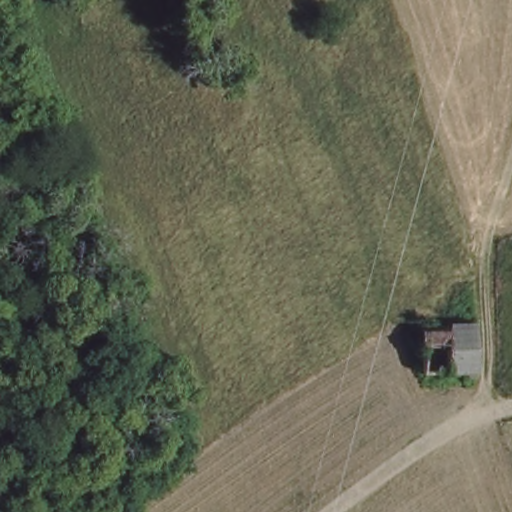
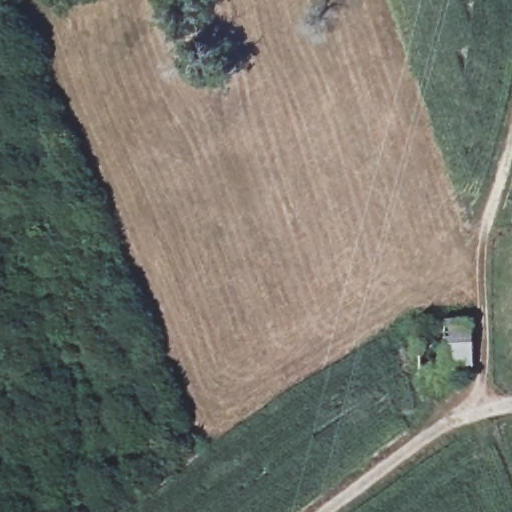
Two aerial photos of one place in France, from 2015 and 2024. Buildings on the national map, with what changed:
unchanged [(467,332),(467,378),(418,377),(417,333),(467,332)]

